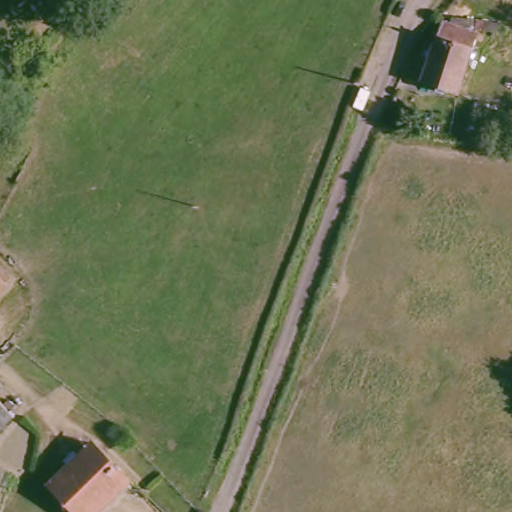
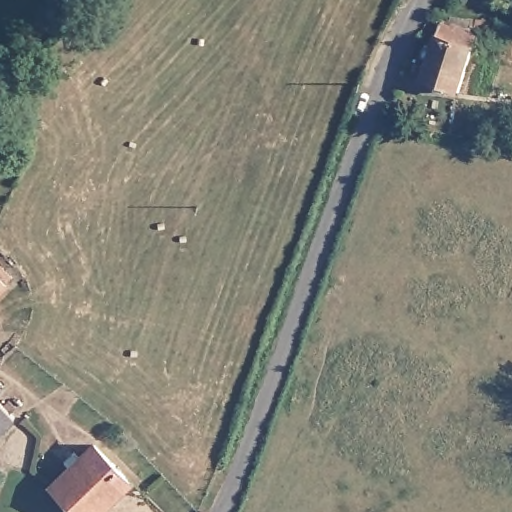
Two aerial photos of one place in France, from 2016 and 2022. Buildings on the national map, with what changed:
unchanged [(418,79),(423,61),(420,59),(422,47),(427,49),(437,24),(452,28),(454,17),(479,21),(474,34),(471,34),(452,91),(418,79)]
unchanged [(8,280),(0,288),(0,270),(8,280)]
unchanged [(13,415),(0,429),(0,400),(13,415)]
unchanged [(45,485),(89,442),(128,482),(98,512),(73,512),(45,485)]

